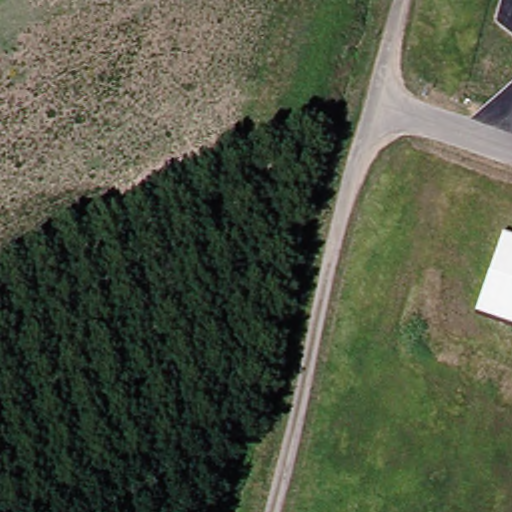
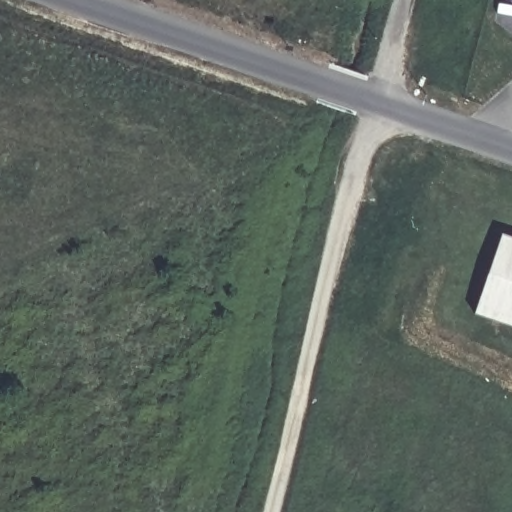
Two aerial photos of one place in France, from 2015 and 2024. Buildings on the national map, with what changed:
unchanged [(502,236),(512,239),(512,320),(478,308),(502,236)]

